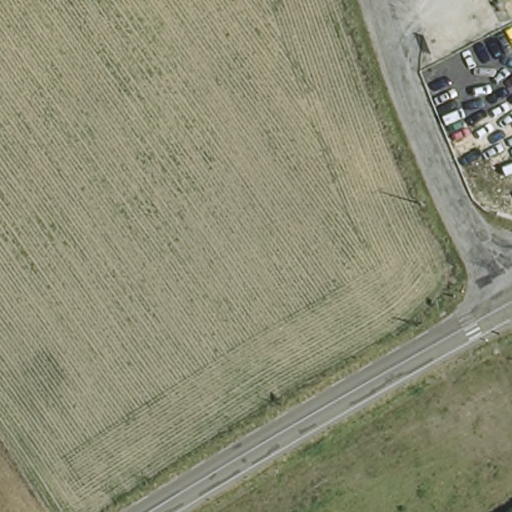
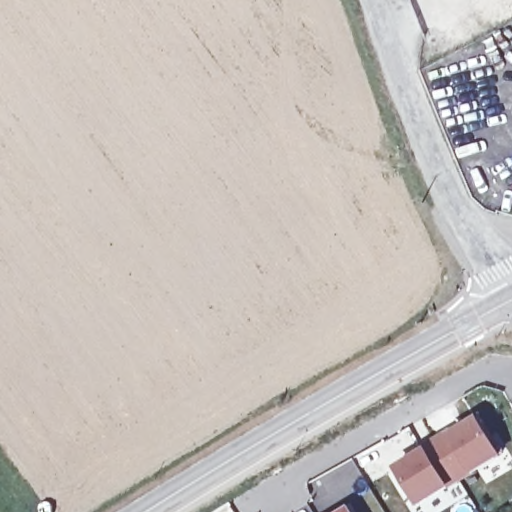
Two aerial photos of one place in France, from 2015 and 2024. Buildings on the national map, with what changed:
new [(447,440),(449,442),(474,426),(496,462),(458,486),(434,448),(447,440)]
new [(418,511),(395,476),(422,459),(421,456),(434,448),(458,486),(418,511)]

